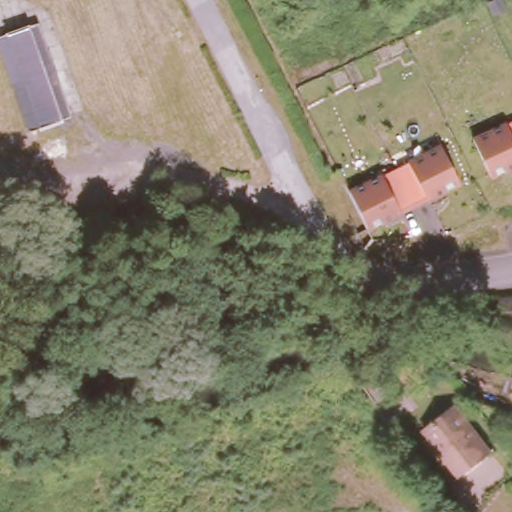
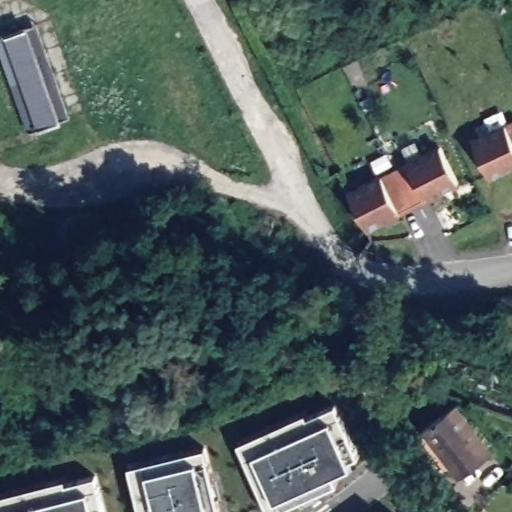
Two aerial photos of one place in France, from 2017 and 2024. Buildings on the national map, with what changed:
unchanged [(63,115),(31,22),(42,19),(74,111),(63,115)]
unchanged [(33,125),(0,31),(31,22),(63,115),(33,125)]
unchanged [(512,169),(490,179),(471,137),(512,118),(512,169)]
unchanged [(460,184),(369,230),(348,187),(439,142),(460,184)]
unchanged [(336,173),(369,240),(361,250),(325,178),(336,173)]
unchanged [(508,293),(512,293),(512,319),(508,293)]
unchanged [(500,440),(468,464),(433,417),(466,393),(500,440)]
new [(309,416),(336,404),(360,455),(351,459),(354,465),(334,473),(338,483),(274,512),(269,512),(238,442),(306,411),(309,416)]
new [(220,512),(138,512),(128,466),(205,448),(220,512)]
new [(64,483),(94,475),(103,512),(0,512),(0,495),(63,478),(64,483)]

